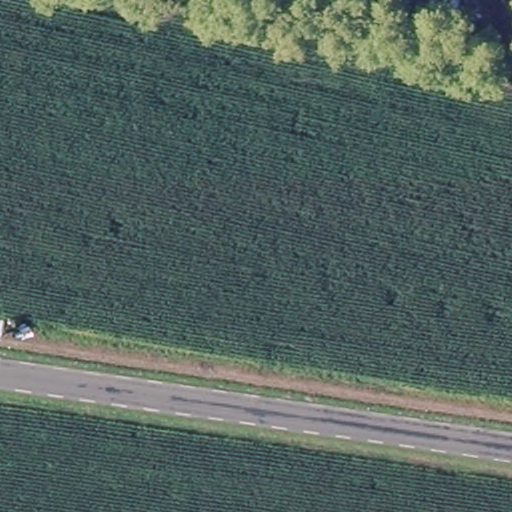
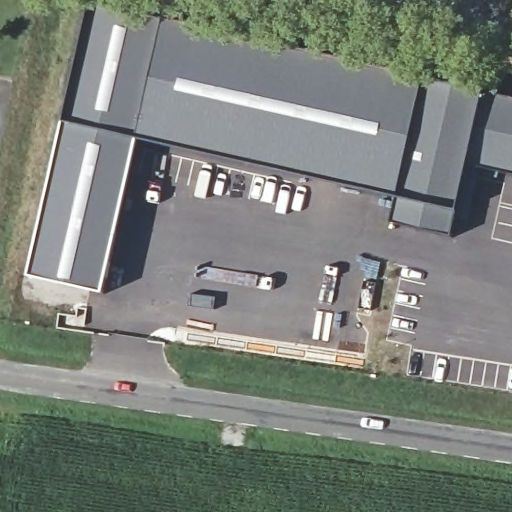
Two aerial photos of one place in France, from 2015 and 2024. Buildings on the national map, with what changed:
new [(65,123),(93,0),(95,0),(425,78),(485,91),(512,97),(512,175),(469,165),(457,213),(452,236),(392,224),(398,197),(140,139),(104,294),(30,277),(65,123)]

